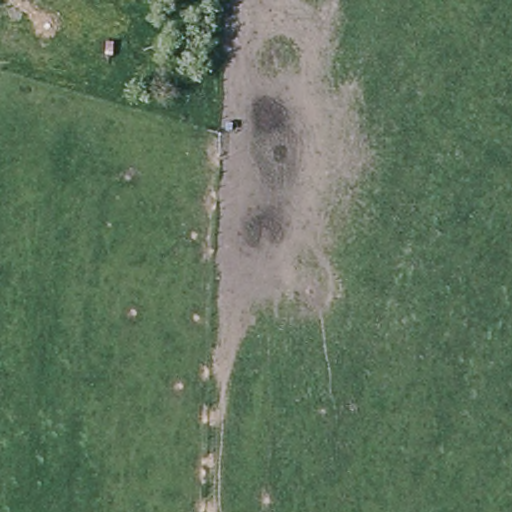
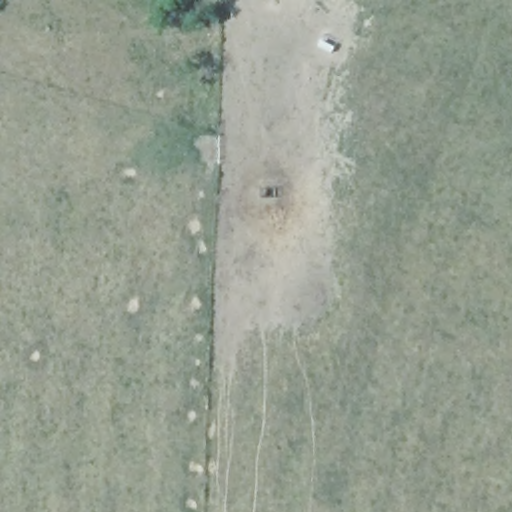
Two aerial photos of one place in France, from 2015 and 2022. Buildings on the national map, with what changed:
[]

